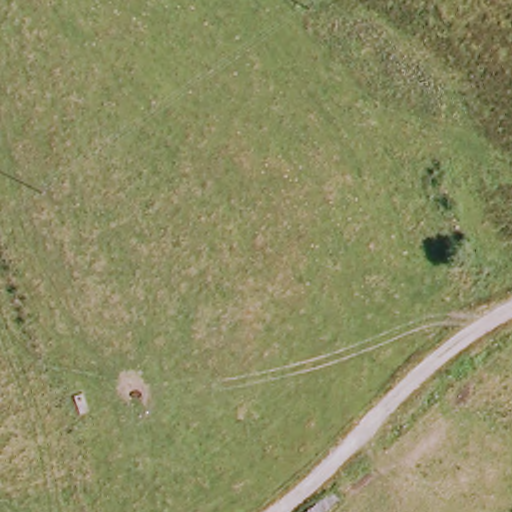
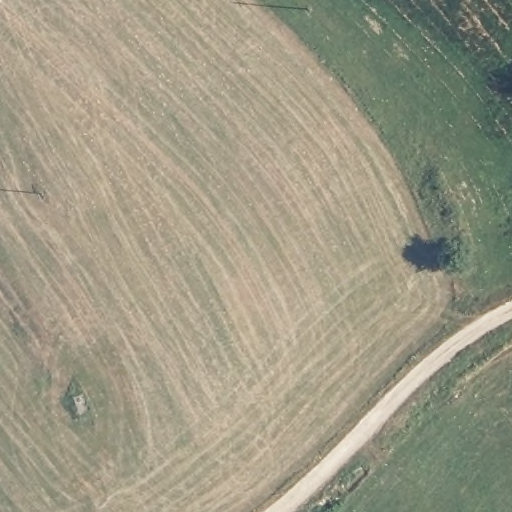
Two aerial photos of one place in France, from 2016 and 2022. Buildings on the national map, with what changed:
unchanged [(82,391),(88,410),(79,411),(72,395),(82,391)]

